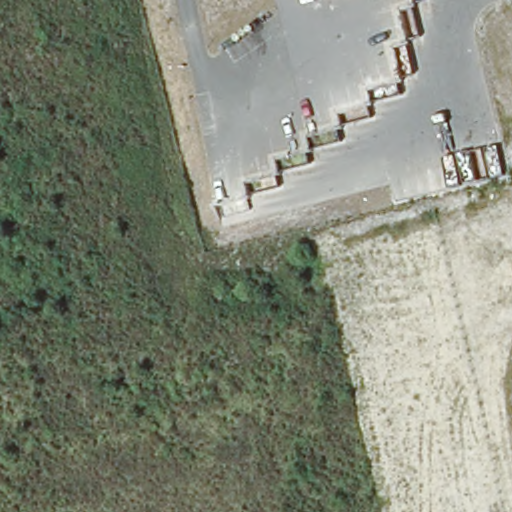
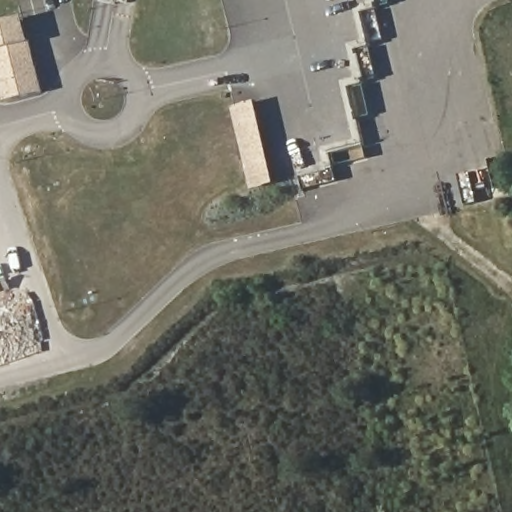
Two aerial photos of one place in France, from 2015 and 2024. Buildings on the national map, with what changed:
new [(45,92),(6,102),(0,78),(0,23),(25,17),(32,41),(45,92)]
new [(277,184),(255,190),(234,109),(258,102),(277,184)]

